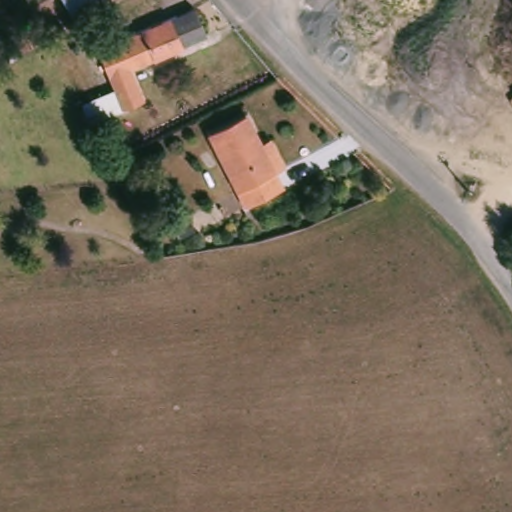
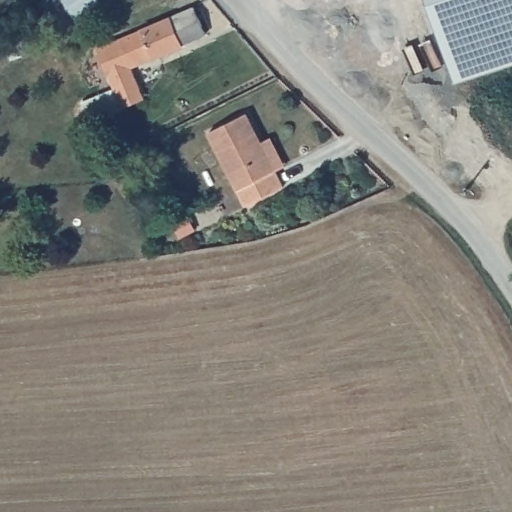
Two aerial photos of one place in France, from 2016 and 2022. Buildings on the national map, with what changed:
unchanged [(57,0),(95,0),(97,2),(69,21),(57,0)]
new [(456,81),(429,1),(429,0),(512,0),(512,63),(456,81)]
unchanged [(178,46),(130,71),(146,98),(126,108),(95,53),(166,17),(200,3),(209,20),(177,36),(181,45),(178,46)]
unchanged [(206,134),(245,114),(260,141),(269,137),(284,168),(272,175),(278,187),(245,205),(206,134)]

